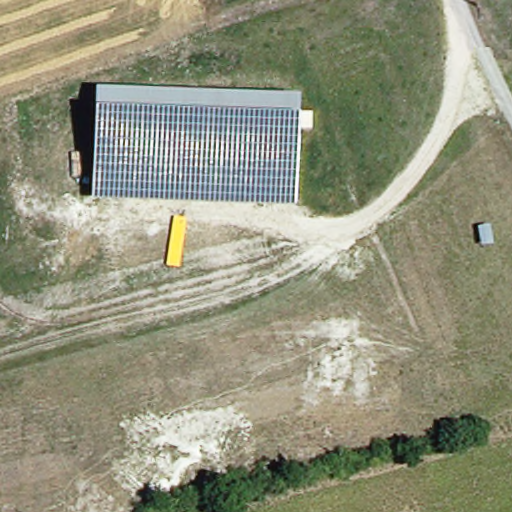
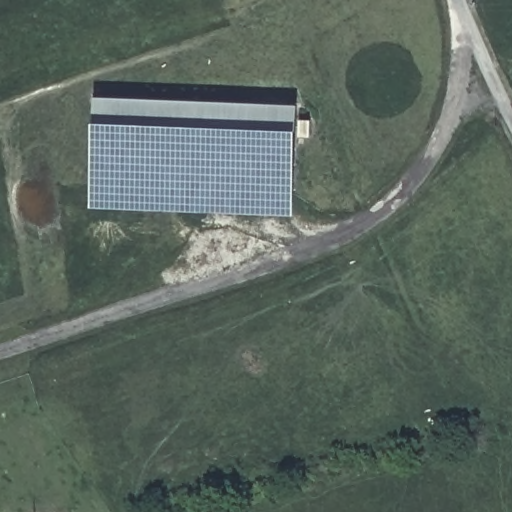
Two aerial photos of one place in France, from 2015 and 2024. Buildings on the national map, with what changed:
unchanged [(95,98),(299,102),(296,192),(93,188),(95,98)]
unchanged [(296,192),(296,210),(93,206),(93,188),(296,192)]

